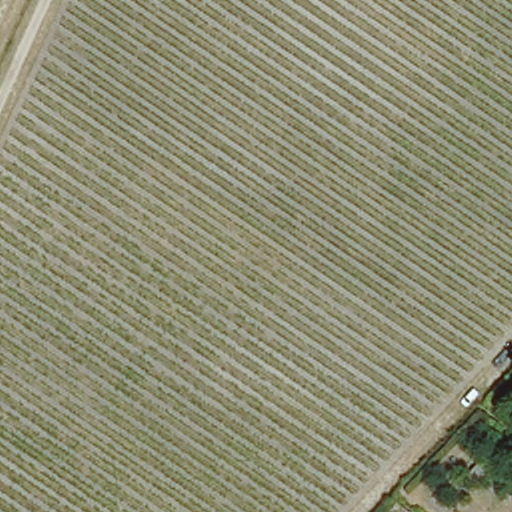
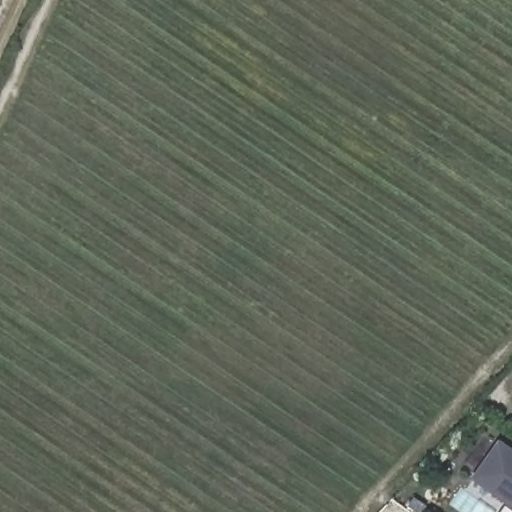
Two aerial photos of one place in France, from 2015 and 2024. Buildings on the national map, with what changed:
new [(512,451),(512,511),(468,480),(496,440),(512,451)]
demolished [(470,488),(458,477),(484,448),(496,459),(470,488)]

